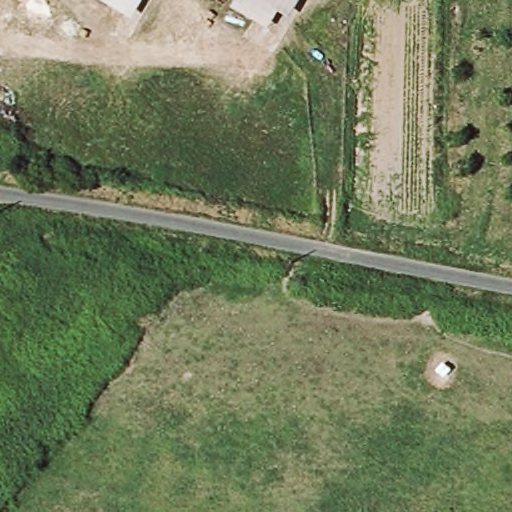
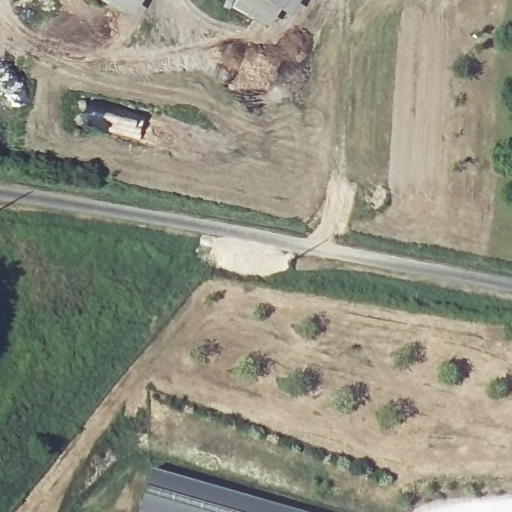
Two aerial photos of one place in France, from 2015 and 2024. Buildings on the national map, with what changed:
unchanged [(128,17),(100,0),(139,0),(128,17)]
unchanged [(286,17),(274,11),(264,27),(227,6),(231,0),(296,0),(286,17)]
new [(299,512),(139,512),(151,468),(299,512)]

